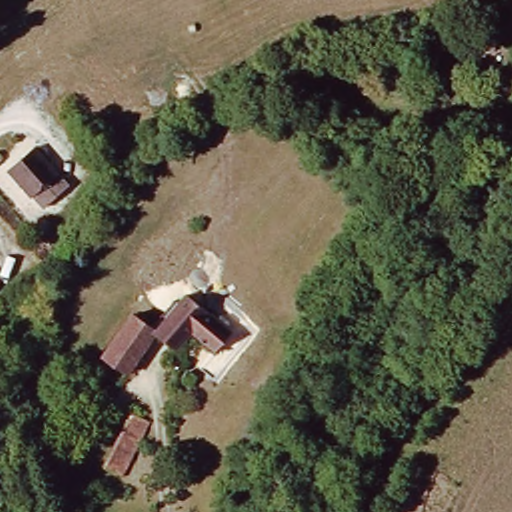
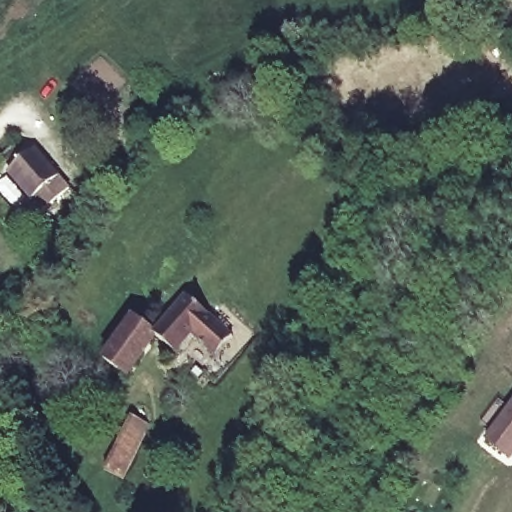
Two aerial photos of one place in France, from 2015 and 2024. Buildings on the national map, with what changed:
unchanged [(31,197),(28,201),(6,179),(30,152),(67,185),(46,208),(31,197)]
unchanged [(178,297),(225,336),(207,355),(185,337),(173,352),(149,335),(178,297)]
unchanged [(98,359),(122,318),(149,335),(125,374),(98,359)]
new [(499,399),(509,406),(512,401),(512,457),(485,437),(491,429),(482,422),(499,399)]
unchanged [(100,469),(128,416),(145,426),(116,477),(100,469)]

